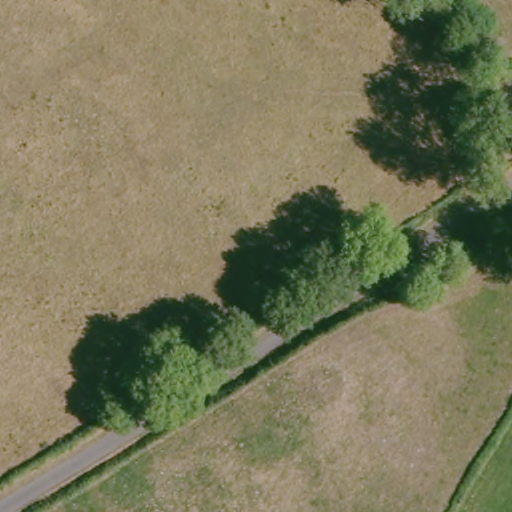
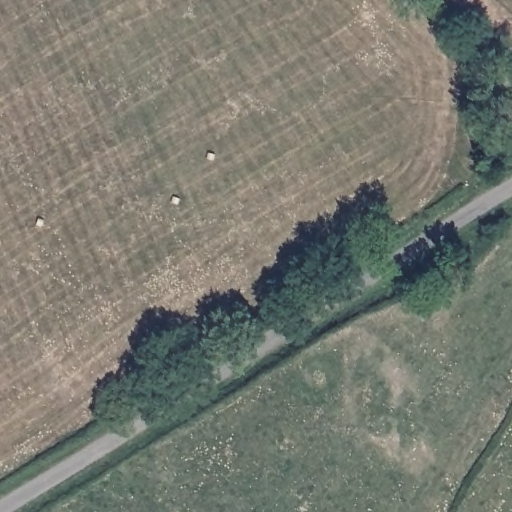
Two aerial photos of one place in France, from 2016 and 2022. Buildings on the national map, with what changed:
[]

